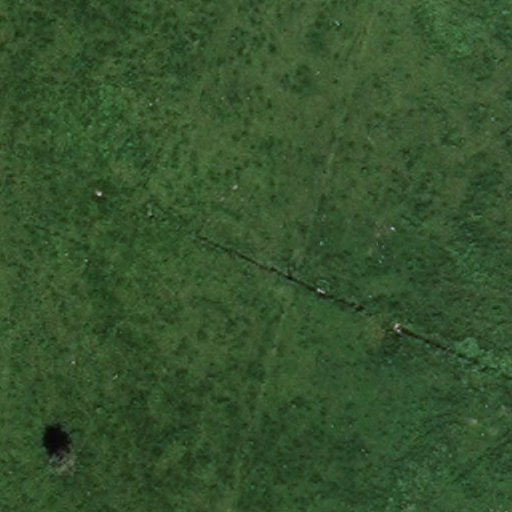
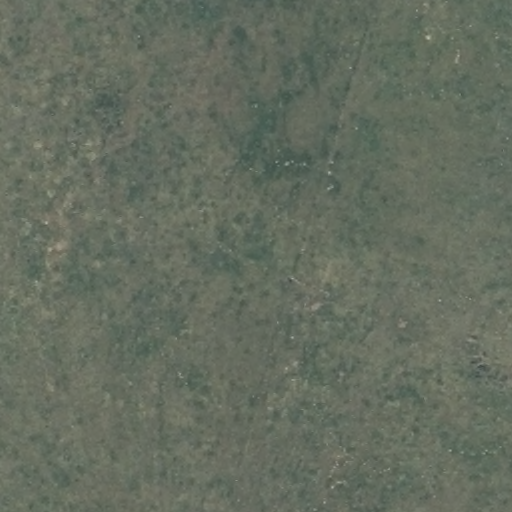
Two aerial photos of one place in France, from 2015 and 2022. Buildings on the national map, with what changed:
[]

